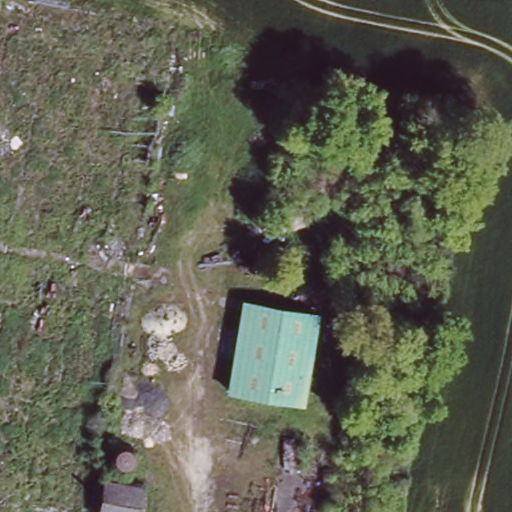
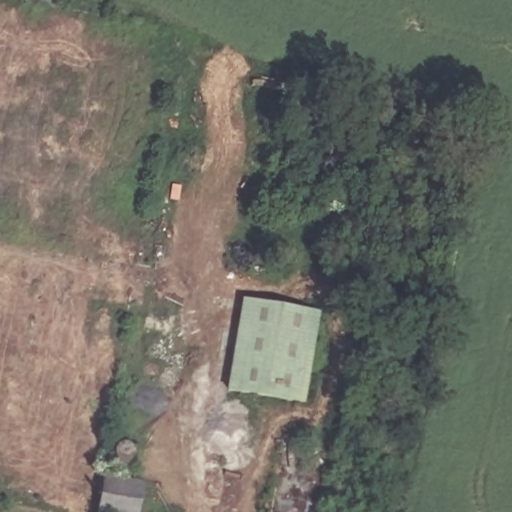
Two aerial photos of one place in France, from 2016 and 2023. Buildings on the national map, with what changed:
unchanged [(313,315),(296,401),(230,388),(247,302),(313,315)]
unchanged [(130,512),(97,512),(104,477),(135,483),(130,512)]

